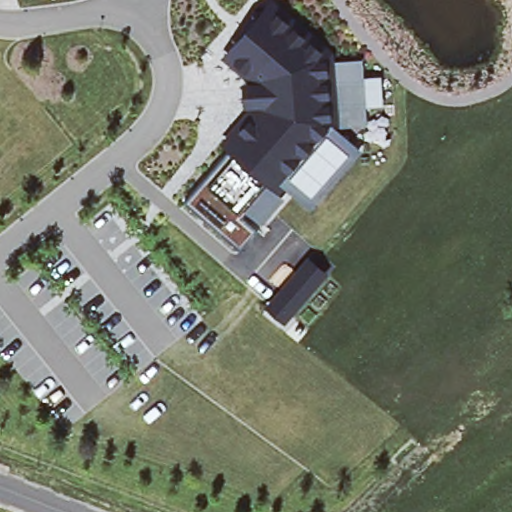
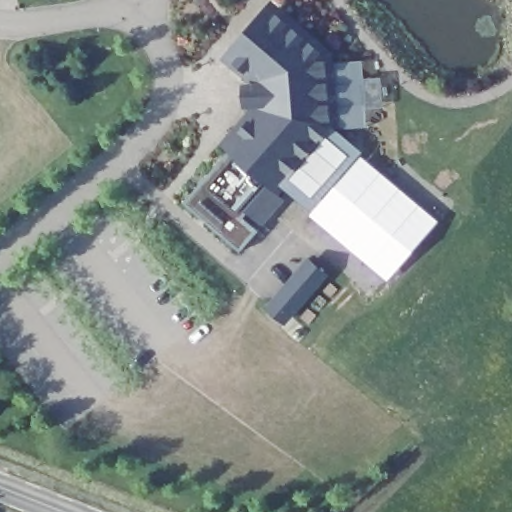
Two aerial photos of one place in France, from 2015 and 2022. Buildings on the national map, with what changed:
unchanged [(49,0),(56,0),(55,3),(49,0)]
unchanged [(218,144),(246,112),(243,81),(220,61),(270,0),(273,0),(336,52),(343,123),(339,129),(362,150),(311,207),(284,185),(276,194),(269,189),(243,218),(257,231),(241,249),(188,202),(228,152),(218,144)]
new [(362,158),(437,223),(387,282),(307,217),(362,158)]
unchanged [(326,275),(284,323),(266,305),(308,256),(326,275)]

